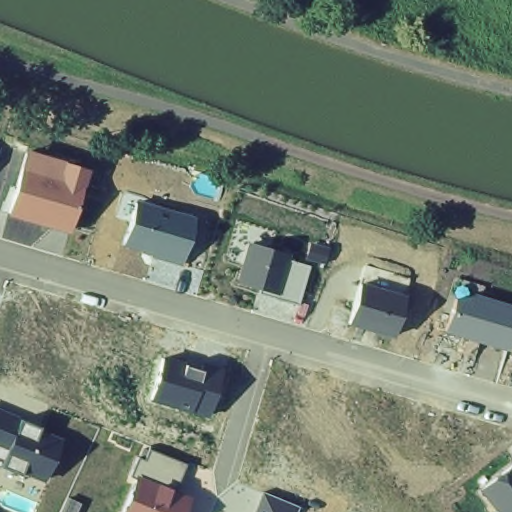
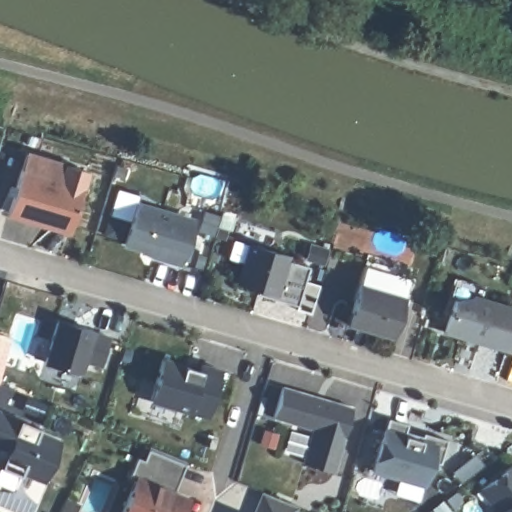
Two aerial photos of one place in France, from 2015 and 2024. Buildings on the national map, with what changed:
unchanged [(85,170),(68,230),(7,212),(25,152),(85,170)]
unchanged [(193,220),(180,265),(152,256),(153,252),(123,243),(135,204),(193,220)]
unchanged [(258,289),(237,283),(250,244),(287,255),(285,260),(308,266),(297,305),(273,298),(256,294),(258,289)]
unchanged [(408,288),(392,346),(347,333),(363,275),(408,288)]
unchanged [(471,296),(480,298),(512,308),(512,332),(507,349),(444,330),(453,298),(470,303),(471,296)]
new [(93,330),(92,332),(109,337),(101,365),(84,361),(80,373),(45,363),(57,320),(93,330)]
unchanged [(186,365),(185,370),(198,375),(201,365),(220,370),(207,416),(150,400),(162,358),(186,365)]
new [(351,407),(333,472),(303,463),(305,460),(313,428),(293,422),(273,416),(282,387),(351,407)]
unchanged [(18,420),(18,419),(38,427),(37,432),(60,441),(43,480),(21,471),(19,476),(0,467),(0,464),(0,462),(0,413),(18,420)]
new [(398,476),(390,475),(371,468),(386,417),(405,423),(403,430),(420,435),(421,432),(446,439),(439,463),(428,460),(425,474),(421,483),(398,476)]
unchanged [(128,476),(136,456),(143,460),(148,445),(185,461),(172,493),(181,496),(187,498),(182,510),(181,512),(121,512),(135,479),(128,476)]
unchanged [(512,512),(498,512),(498,511),(481,490),(512,464),(512,512)]
unchanged [(295,505),(293,512),(254,512),(262,492),(295,505)]
new [(78,503),(74,512),(61,512),(67,498),(78,503)]

